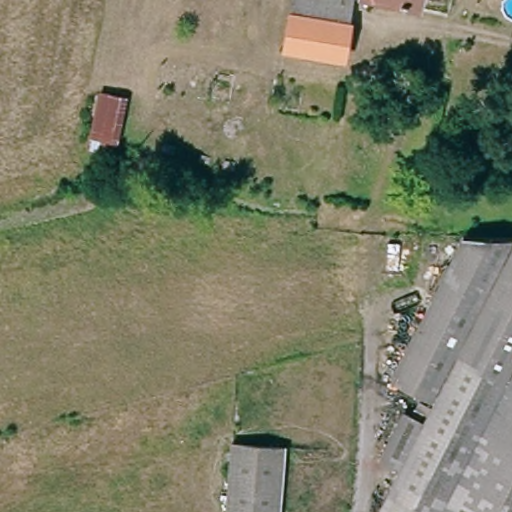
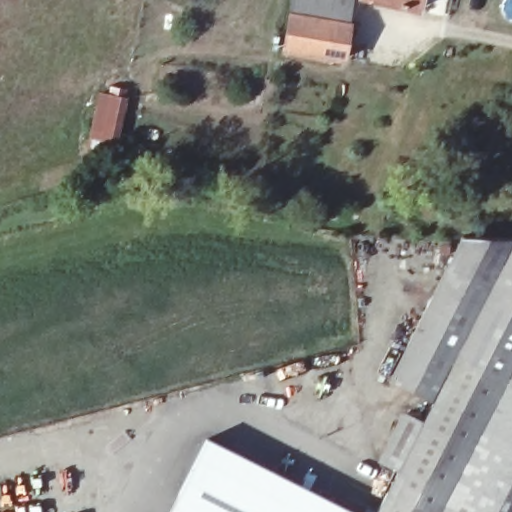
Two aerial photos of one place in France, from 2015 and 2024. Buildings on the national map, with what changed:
unchanged [(309,52),(285,47),(292,7),(294,0),(352,0),(349,17),(343,58),(309,52)]
unchanged [(420,6),(383,0),(421,0),(420,6)]
demolished [(181,64),(233,70),(229,105),(178,97),(156,92),(162,61),(181,64)]
unchanged [(113,153),(85,150),(97,92),(127,97),(113,153)]
unchanged [(439,512),(378,512),(400,468),(423,423),(431,407),(434,400),(390,377),(449,262),(462,236),(512,237),(512,384),(506,381),(439,512)]
unchanged [(512,512),(439,512),(506,381),(512,384),(512,512)]
unchanged [(379,458),(402,413),(409,417),(423,423),(400,468),(379,458)]
new [(354,512),(168,512),(206,437),(354,512)]
demolished [(226,512),(231,442),(283,447),(278,512),(226,512)]

